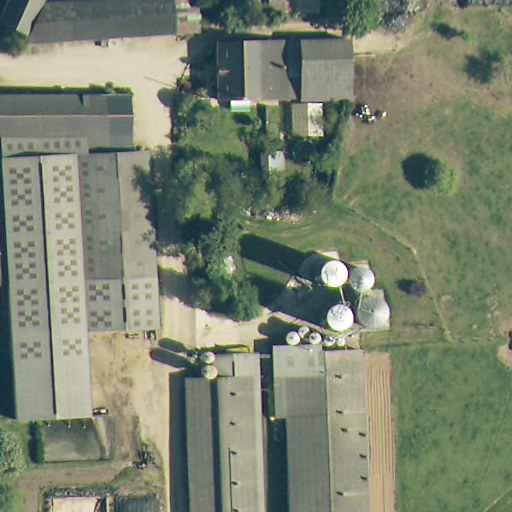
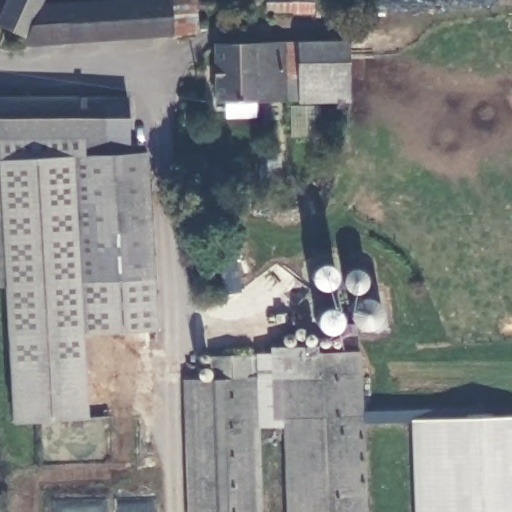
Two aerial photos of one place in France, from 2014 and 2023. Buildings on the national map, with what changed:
unchanged [(28,34),(7,27),(1,17),(9,0),(44,0),(28,34)]
unchanged [(170,5),(170,34),(35,44),(28,34),(44,0),(170,0),(170,5)]
unchanged [(170,5),(170,0),(198,0),(199,31),(170,34),(170,5)]
unchanged [(320,11),(284,12),(268,13),(267,4),(239,4),(238,0),(321,0),(320,11)]
unchanged [(286,100),(217,101),(216,43),(285,40),(286,100)]
unchanged [(351,101),(300,104),(300,100),(286,100),(285,40),(351,40),(351,101)]
unchanged [(84,151),(61,151),(60,135),(0,135),(0,94),(132,93),(132,150),(84,151)]
unchanged [(61,151),(84,151),(84,155),(87,278),(156,275),(159,317),(85,321),(87,348),(90,406),(17,410),(10,284),(0,284),(0,135),(60,135),(61,151)]
unchanged [(150,153),(152,200),(156,275),(87,278),(84,155),(150,153)]
unchanged [(283,182),(270,185),(269,155),(283,154),(283,182)]
new [(337,271),(336,276),(335,280),(331,285),(325,286),(321,286),(315,283),(312,278),(314,266),(318,263),(322,262),(327,262),(332,263),(335,266),(337,271)]
new [(368,277),(368,282),(365,287),(360,291),(354,291),(348,287),(345,281),(345,275),(350,270),(355,268),(360,268),(365,271),(368,277)]
new [(378,299),(381,302),(383,307),(384,312),(383,317),(381,321),(376,326),(370,328),(363,328),(358,324),(353,315),(354,308),(357,303),(362,299),(367,296),(371,297),(378,299)]
new [(343,315),(343,319),(341,325),(337,330),(331,331),(326,331),(320,328),(317,323),(317,312),(320,307),(325,305),(330,305),(335,305),(338,307),(341,311),(343,315)]
unchanged [(281,416),(279,341),(323,340),(323,347),(365,346),(369,512),(294,512),(291,416),(281,416)]
new [(210,365),(211,368),(211,373),(209,376),(205,378),(202,378),(200,376),(199,370),(200,367),(201,365),(199,361),(199,355),(206,351),(210,354),(210,357),(209,360),(206,365),(210,365)]
unchanged [(217,380),(216,353),(256,352),(260,512),(198,512),(195,381),(217,380)]
new [(415,512),(410,418),(512,414),(512,512),(415,512)]

